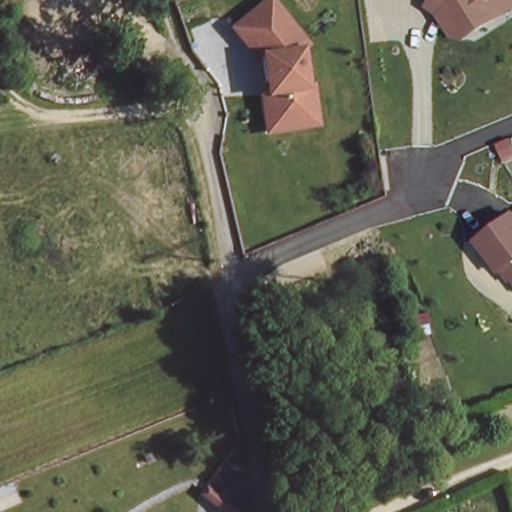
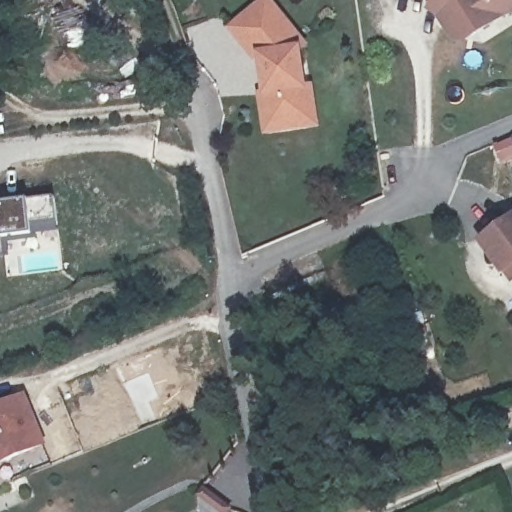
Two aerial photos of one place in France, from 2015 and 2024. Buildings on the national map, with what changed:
unchanged [(470,42),(455,39),(441,17),(428,8),(429,0),(512,0),(512,16),(470,42)]
unchanged [(322,129),(309,131),(272,135),(268,97),(277,96),(276,84),(272,85),(270,59),(263,60),(242,31),(279,3),(314,50),(308,55),(312,93),(318,92),(322,129)]
new [(58,218),(32,221),(34,231),(4,235),(6,251),(0,252),(0,200),(55,193),(58,218)]
unchanged [(508,272),(485,242),(512,219),(512,269),(508,272)]
new [(42,443),(0,461),(0,406),(22,396),(42,443)]

